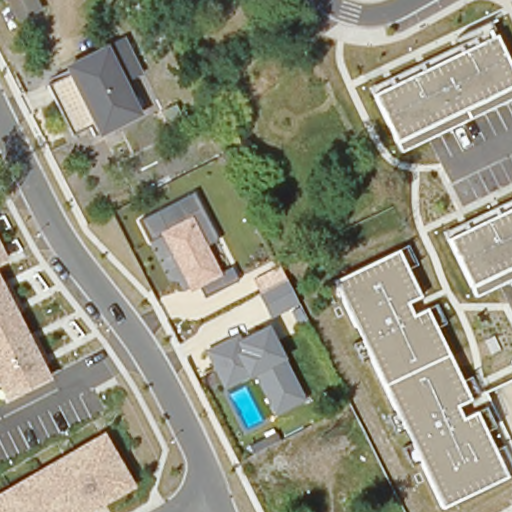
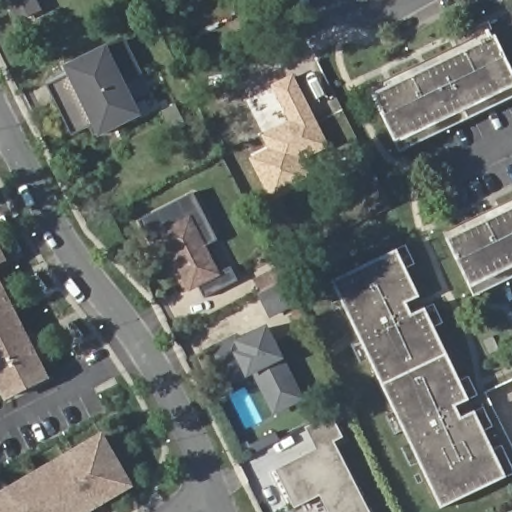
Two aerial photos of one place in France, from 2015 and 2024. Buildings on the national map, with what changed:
unchanged [(0,0),(34,0),(35,2),(8,16),(0,0)]
unchanged [(512,68),(512,100),(403,152),(374,96),(371,87),(463,42),(460,36),(489,22),(497,38),(512,68)]
unchanged [(143,116),(99,138),(93,124),(75,133),(49,85),(69,76),(64,65),(108,44),(126,37),(143,73),(126,81),(143,116)]
new [(269,198),(249,159),(268,149),(261,135),(289,121),(271,86),(293,74),(330,147),(303,160),(311,176),(269,198)]
unchanged [(162,232),(151,237),(142,218),(193,192),(218,239),(207,244),(221,272),(231,267),(236,279),(204,296),(200,286),(190,292),(162,232)]
unchanged [(447,230),(512,201),(512,279),(476,296),(452,244),(447,230)]
unchanged [(0,243),(9,260),(0,265),(0,243)]
unchanged [(419,295),(406,302),(412,316),(426,309),(469,399),(456,406),(462,419),(477,412),(507,476),(444,508),(335,281),(399,250),(419,295)]
unchanged [(260,293),(253,278),(281,265),(288,279),(299,303),(271,317),(260,293)]
unchanged [(6,402),(0,390),(0,276),(51,378),(6,402)]
unchanged [(285,358),(306,400),(274,415),(255,374),(248,377),(223,390),(202,350),(234,335),(236,339),(270,325),(285,358)]
new [(295,508),(275,469),(316,448),(305,426),(331,414),(343,438),(334,442),(370,512),(328,512),(319,496),(295,508)]
unchanged [(136,487),(96,512),(0,512),(0,491),(104,431),(136,487)]

